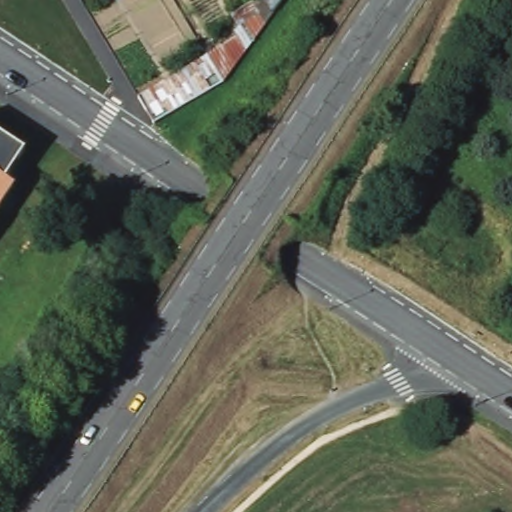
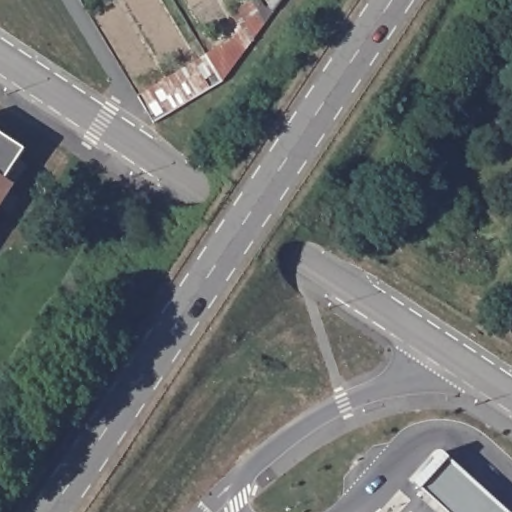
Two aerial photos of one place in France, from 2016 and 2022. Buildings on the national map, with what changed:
unchanged [(241,27),(237,22),(269,1),(273,7),(244,48),(222,79),(218,85),(155,124),(138,94),(205,51),(234,31),(241,27)]
unchanged [(8,143),(22,153),(28,156),(24,161),(8,186),(16,191),(0,215),(0,138),(8,143)]
new [(414,484),(442,453),(450,459),(508,512),(445,512),(421,491),(414,484)]

